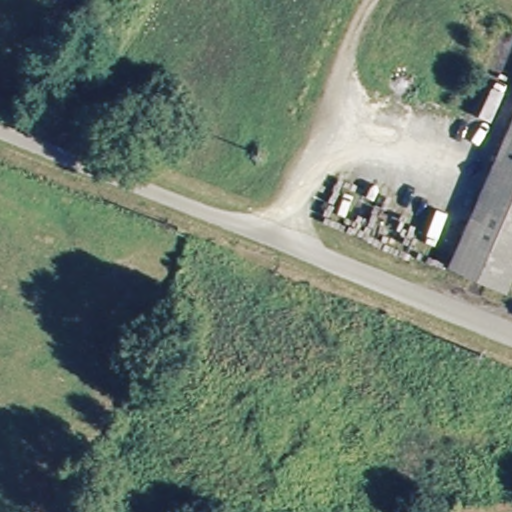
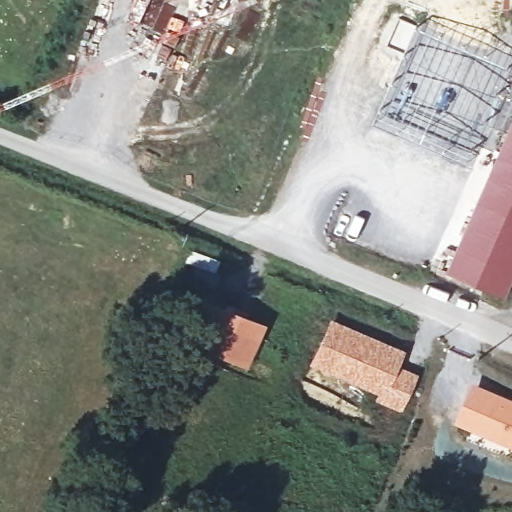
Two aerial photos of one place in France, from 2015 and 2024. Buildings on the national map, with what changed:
unchanged [(495,293),(454,274),(512,146),(512,256),(495,293)]
new [(194,353),(211,304),(263,324),(247,370),(194,353)]
new [(329,317),(405,350),(399,365),(418,374),(401,412),(375,400),(377,395),(308,365),(329,317)]
new [(512,398),(512,448),(455,425),(473,382),(512,398)]

